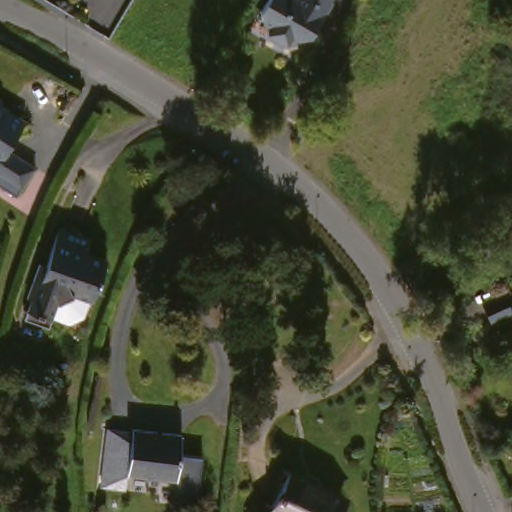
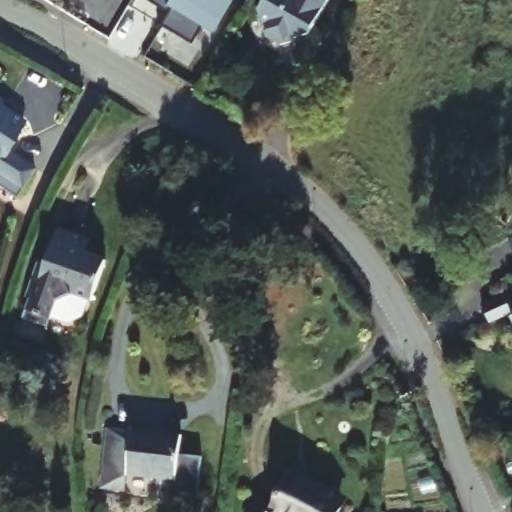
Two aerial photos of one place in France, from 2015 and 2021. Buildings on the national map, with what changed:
new [(221,7),(209,27),(198,21),(185,42),(156,23),(173,0),(210,0),(221,7)]
unchanged [(323,37),(308,41),(309,45),(295,48),(284,41),(291,30),(277,21),(271,18),(275,12),(282,0),(342,0),(345,2),(323,37)]
unchanged [(9,112),(30,125),(12,152),(38,170),(18,199),(0,188),(0,97),(6,102),(9,112)]
unchanged [(31,324),(34,317),(37,307),(34,305),(44,277),(50,280),(53,270),(66,234),(98,245),(93,260),(112,267),(98,307),(97,307),(91,323),(78,331),(58,323),(57,325),(55,332),(31,324)]
unchanged [(510,286),(512,285),(512,292),(510,286)]
unchanged [(104,486),(106,468),(111,426),(136,428),(136,427),(185,433),(179,477),(130,472),(127,490),(104,486)]
unchanged [(347,512),(274,512),(284,505),(304,472),(353,502),(347,512)]

